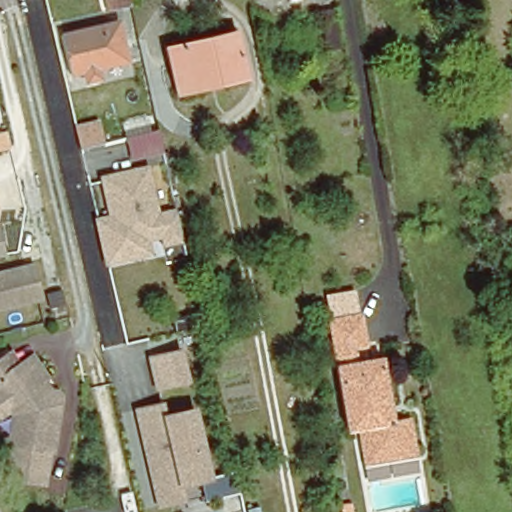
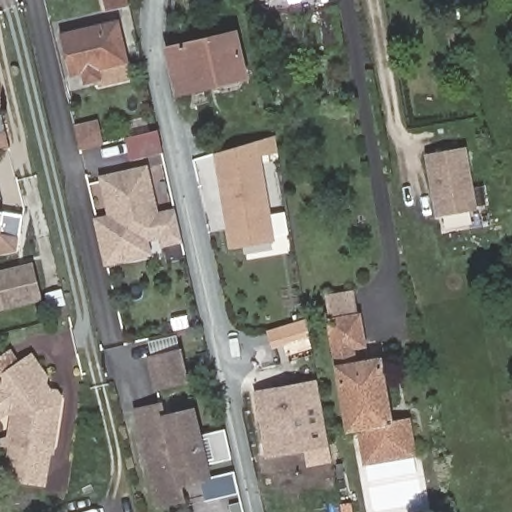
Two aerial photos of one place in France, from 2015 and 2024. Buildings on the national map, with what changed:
unchanged [(128,7),(107,12),(104,0),(126,0),(128,7)]
unchanged [(298,2),(286,5),(285,0),(298,0),(298,2)]
unchanged [(343,49),(326,51),(320,16),(319,11),(335,8),(336,12),(343,49)]
unchanged [(130,58),(100,65),(102,74),(90,77),(87,67),(67,72),(60,74),(50,36),(59,35),(121,21),(130,58)]
unchanged [(451,52),(447,32),(462,29),(465,50),(451,52)]
unchanged [(177,95),(166,51),(235,34),(245,79),(177,95)]
unchanged [(100,146),(80,150),(75,129),(95,124),(100,146)]
unchanged [(159,139),(161,154),(130,161),(125,140),(157,132),(159,139)]
new [(275,135),(278,154),(261,156),(276,242),(252,246),(229,250),(212,153),(236,147),(275,135)]
new [(435,217),(424,155),(467,147),(478,210),(435,217)]
unchanged [(106,263),(105,257),(100,235),(99,232),(96,221),(110,217),(101,179),(145,168),(156,215),(175,211),(175,215),(181,240),(164,244),(162,235),(159,236),(145,239),(148,253),(106,263)]
unchanged [(0,256),(0,231),(5,255),(0,256)]
unchanged [(0,309),(0,273),(31,266),(40,300),(0,309)]
unchanged [(344,420),(327,321),(360,314),(366,346),(378,343),(381,358),(389,402),(392,422),(406,419),(413,456),(365,465),(358,427),(346,430),(344,420)]
new [(286,357),(281,341),(270,345),(266,330),(290,323),(302,320),(305,334),(307,351),(286,357)]
unchanged [(187,383),(157,390),(150,360),(180,352),(187,383)]
unchanged [(12,367),(22,361),(29,357),(61,404),(56,409),(50,453),(49,453),(7,447),(13,418),(11,416),(0,425),(0,358),(4,355),(12,367)]
new [(317,379),(330,447),(299,452),(265,458),(252,391),(286,385),(317,379)]
unchanged [(176,502),(159,506),(136,411),(154,407),(161,405),(164,417),(194,410),(210,478),(213,493),(176,502)]
unchanged [(7,447),(49,453),(50,453),(43,487),(1,482),(7,447)]
unchanged [(352,512),(341,512),(340,507),(350,505),(352,512)]
new [(247,512),(246,509),(259,506),(261,512),(247,512)]
demolished [(258,509),(259,512),(247,512),(258,509)]

